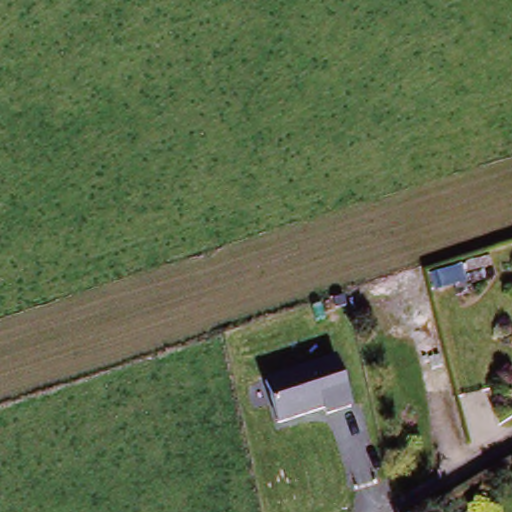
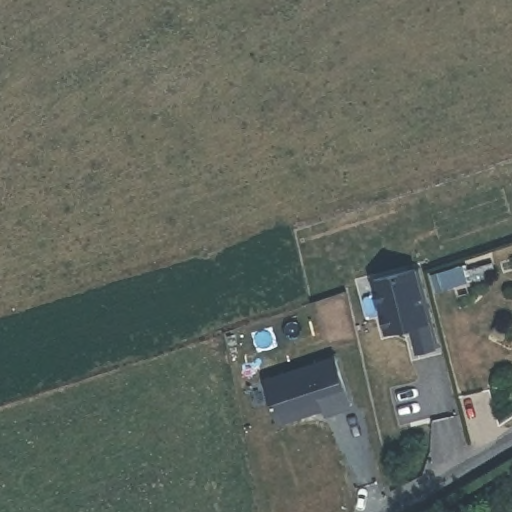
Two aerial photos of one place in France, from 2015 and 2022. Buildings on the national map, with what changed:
new [(410,326),(386,332),(371,279),(417,267),(432,320),(440,347),(415,354),(410,326)]
unchanged [(353,409),(326,418),(324,410),(277,426),(263,380),(337,356),(353,409)]

